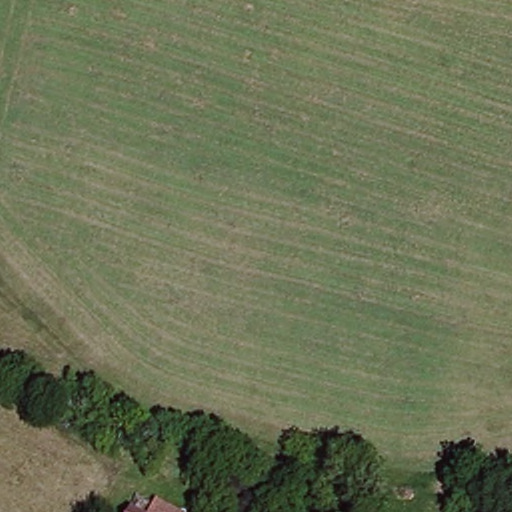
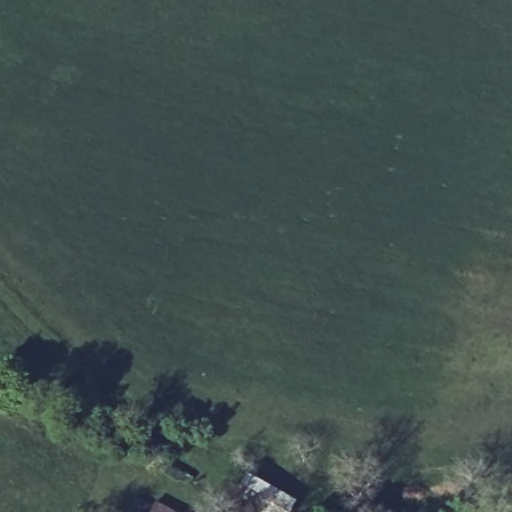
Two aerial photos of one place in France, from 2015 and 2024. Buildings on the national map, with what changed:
new [(289,512),(261,512),(233,497),(246,473),(295,500),(289,512)]
unchanged [(148,503),(171,512),(125,512),(132,496),(148,503)]

